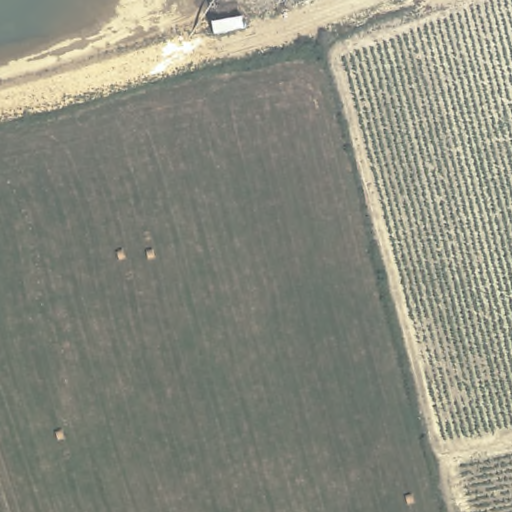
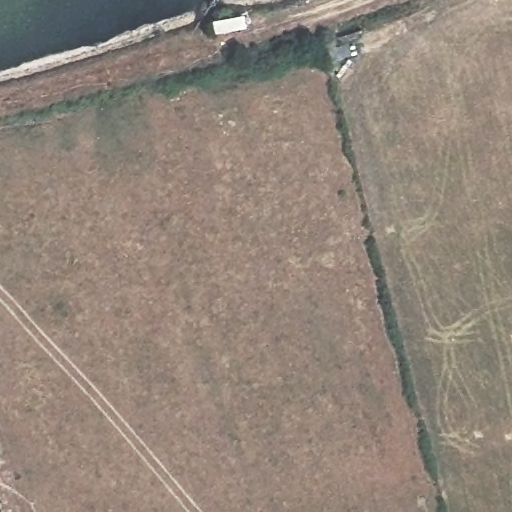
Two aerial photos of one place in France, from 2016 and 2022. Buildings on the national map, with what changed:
unchanged [(238,19),(239,29),(210,34),(209,24),(238,19)]

